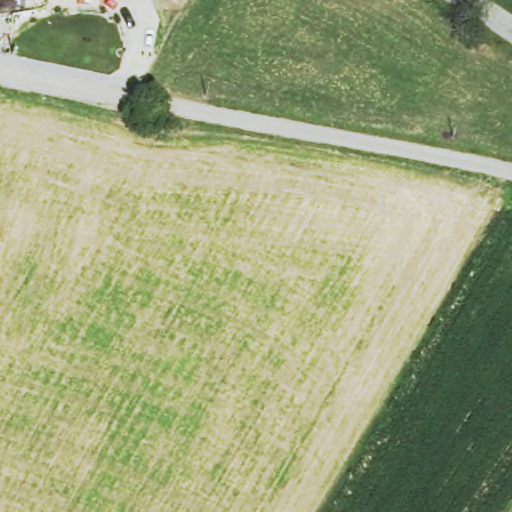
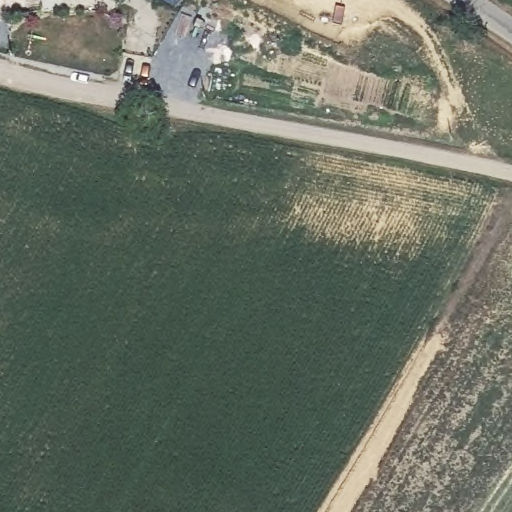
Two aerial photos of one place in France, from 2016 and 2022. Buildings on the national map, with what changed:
unchanged [(104,0),(103,3),(73,0),(104,0)]

